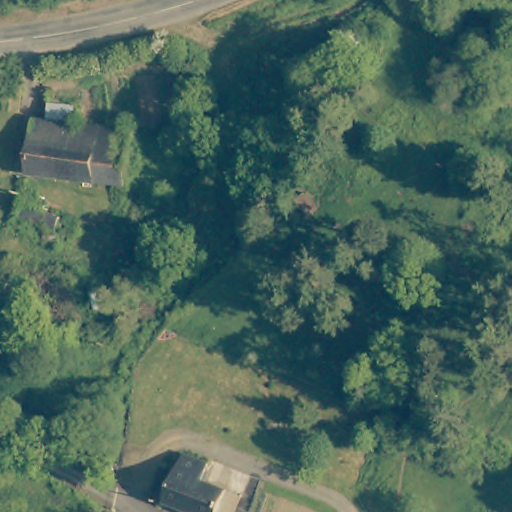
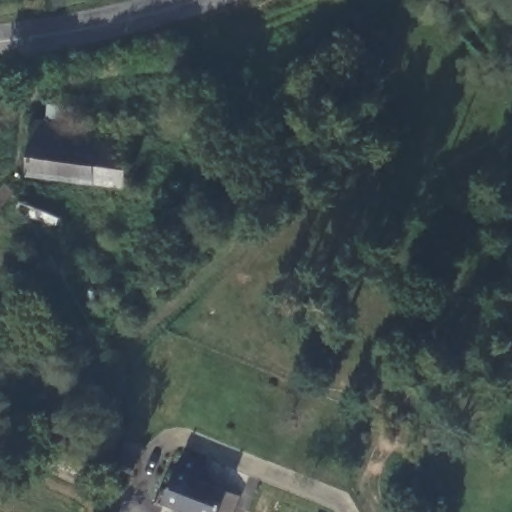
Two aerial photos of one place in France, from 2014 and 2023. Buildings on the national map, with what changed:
unchanged [(29,176),(35,122),(50,124),(53,106),(81,110),(78,127),(129,134),(123,188),(29,176)]
unchanged [(59,221),(30,207),(31,194),(64,211),(59,221)]
unchanged [(193,463),(208,468),(203,481),(232,492),(229,504),(238,507),(237,510),(237,512),(189,512),(171,505),(185,461),(193,463)]

